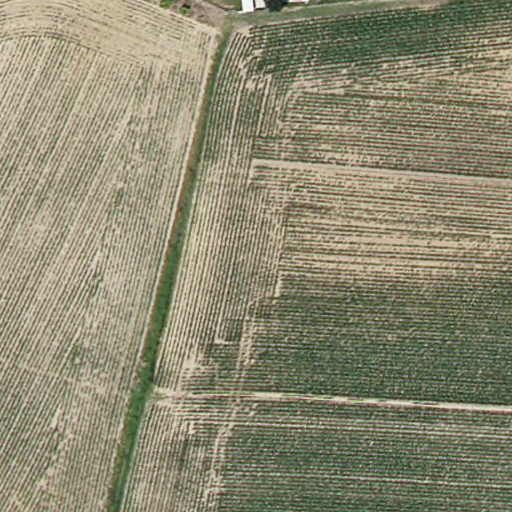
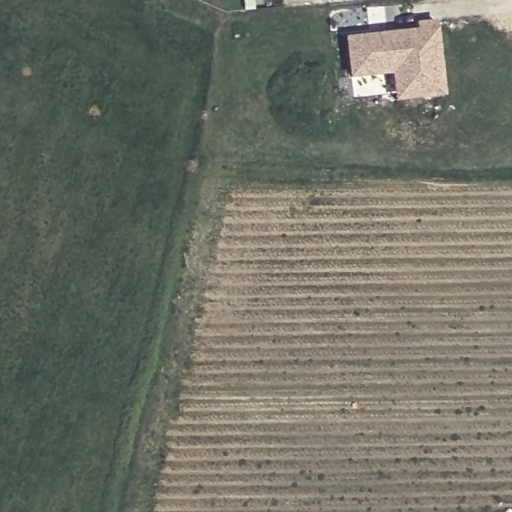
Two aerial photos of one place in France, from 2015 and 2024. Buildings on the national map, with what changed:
new [(281,3),(281,0),(311,0),(311,1),(281,3)]
new [(391,75),(350,78),(345,37),(416,30),(416,25),(440,23),(447,97),(394,103),(391,75)]

